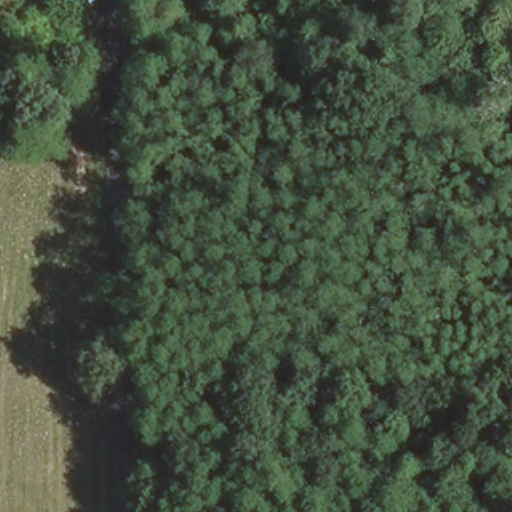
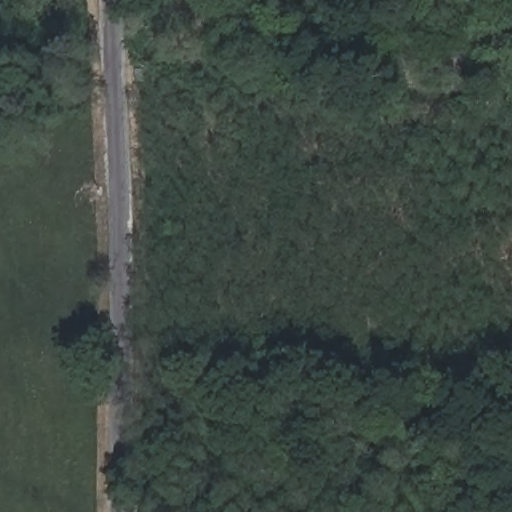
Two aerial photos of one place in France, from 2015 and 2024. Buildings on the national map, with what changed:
[]

